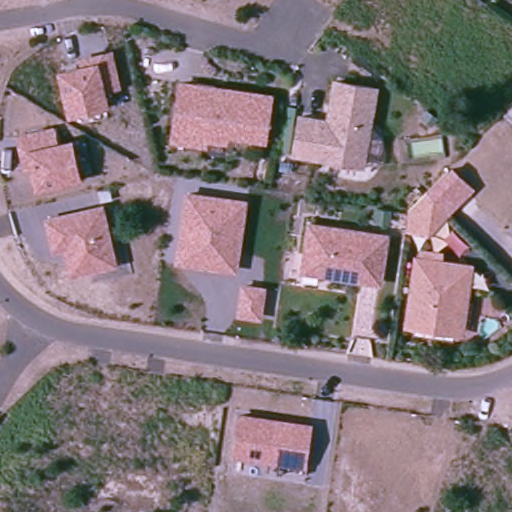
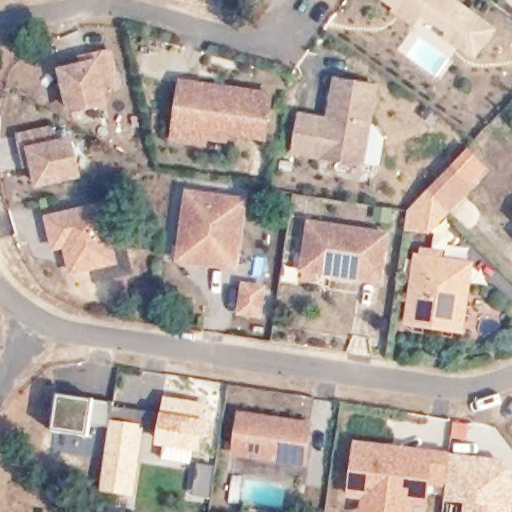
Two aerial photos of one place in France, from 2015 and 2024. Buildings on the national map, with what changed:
new [(384,1),(385,0),(448,0),(494,33),(475,60),(447,40),(450,36),(427,20),(420,31),(396,14),(398,11),(384,1)]
unchanged [(82,65),(80,57),(113,52),(124,91),(112,94),(115,106),(70,116),(59,70),(82,65)]
unchanged [(298,118),(326,123),(333,83),(373,89),(360,166),(292,155),(298,118)]
unchanged [(170,142),(171,135),(179,85),(195,87),(195,85),(213,88),(213,90),(221,91),(269,98),(262,141),(224,136),(223,142),(202,139),(201,146),(170,142)]
unchanged [(420,118),(426,111),(436,118),(430,126),(420,118)]
unchanged [(55,126),(61,140),(76,136),(84,176),(35,187),(31,167),(20,170),(13,136),(55,126)]
unchanged [(425,192),(451,165),(475,188),(447,213),(425,192)]
unchanged [(185,192),(250,200),(237,271),(175,263),(185,192)]
unchanged [(425,192),(447,213),(427,233),(403,230),(406,212),(425,192)]
unchanged [(103,208),(116,264),(74,274),(67,247),(56,250),(50,221),(103,208)]
unchanged [(388,211),(387,221),(373,219),(375,209),(388,211)]
unchanged [(300,271),(307,225),(385,236),(377,282),(340,277),(333,276),(300,271)]
unchanged [(407,310),(415,263),(470,270),(467,289),(461,329),(454,328),(410,322),(406,322),(407,310)]
unchanged [(241,283),(267,285),(262,319),(236,317),(241,283)]
new [(57,395),(95,401),(89,437),(51,432),(57,395)]
unchanged [(312,423),(307,472),(230,461),(238,414),(312,423)]
new [(175,415),(210,420),(205,460),(169,455),(175,415)]
new [(119,435),(149,440),(139,505),(110,500),(119,435)]
new [(447,487),(431,484),(430,507),(415,506),(415,512),(360,512),(361,500),(348,498),(355,439),(450,452),(447,487)]
new [(512,472),(512,512),(463,512),(465,503),(445,501),(447,487),(450,452),(502,459),(512,472)]

